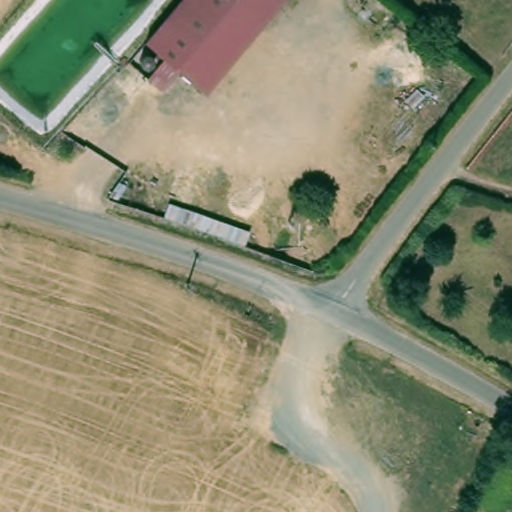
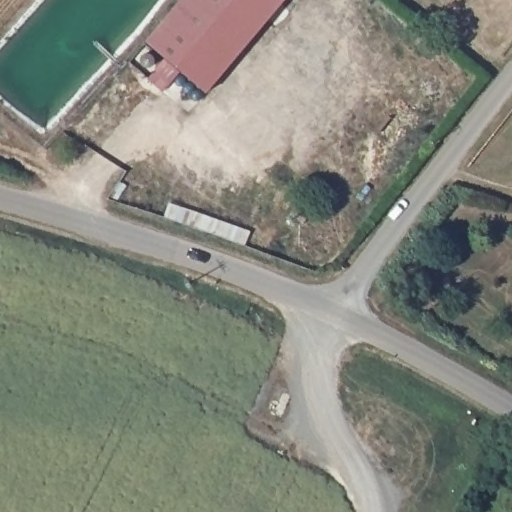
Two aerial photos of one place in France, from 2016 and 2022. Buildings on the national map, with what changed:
unchanged [(282,0),(205,94),(178,71),(144,42),(178,0),(282,0)]
unchanged [(178,71),(162,90),(128,61),(144,42),(178,71)]

